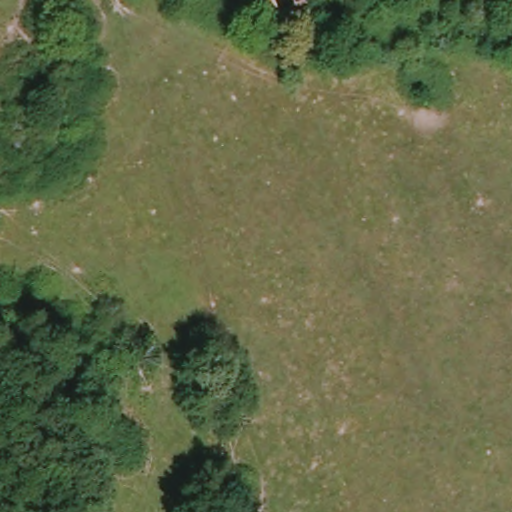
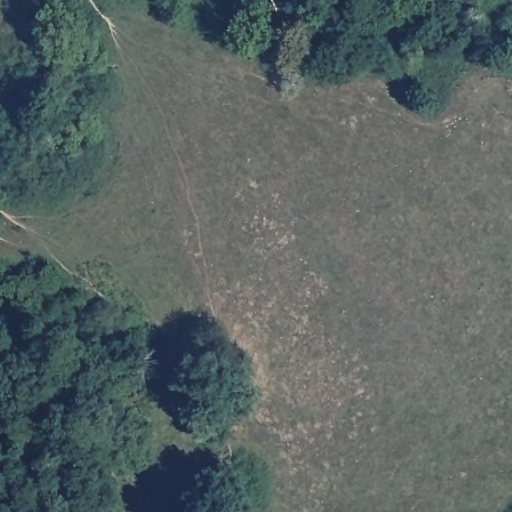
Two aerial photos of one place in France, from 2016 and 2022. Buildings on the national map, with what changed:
unchanged [(273,3),(272,0),(311,0),(278,14),(273,3)]

